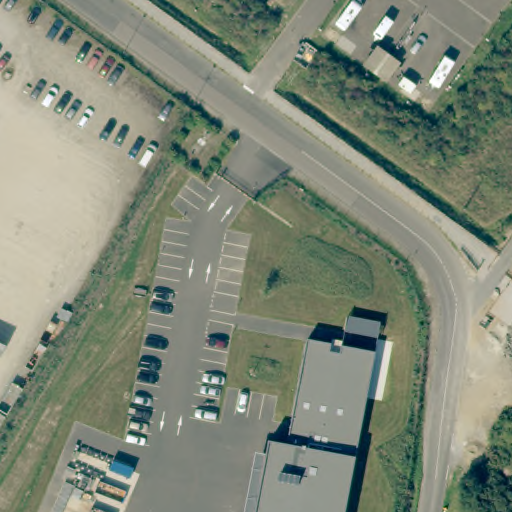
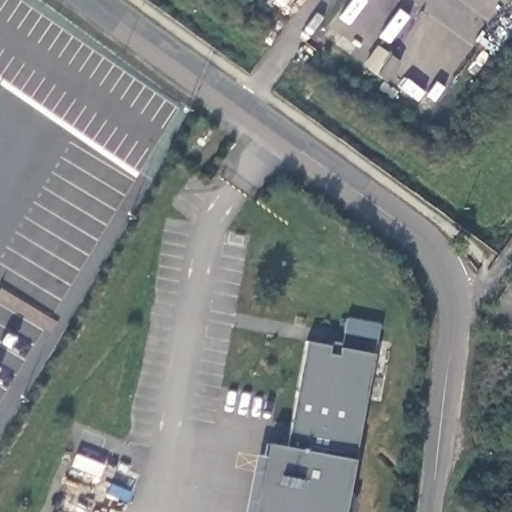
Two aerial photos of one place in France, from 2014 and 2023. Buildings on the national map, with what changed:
unchanged [(381,79),(368,69),(364,65),(367,61),(378,46),(400,63),(389,78),(386,83),(381,79)]
unchanged [(254,456),(262,457),(265,447),(286,450),(305,344),(369,356),(349,466),(340,512),(243,512),(254,456)]

